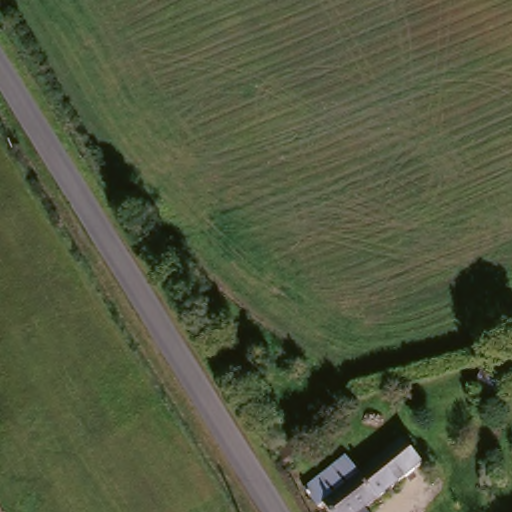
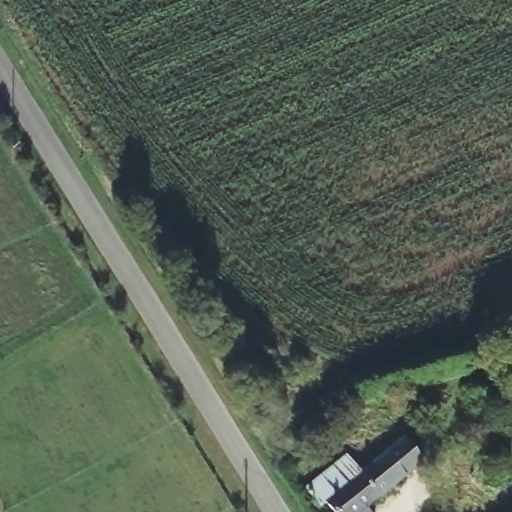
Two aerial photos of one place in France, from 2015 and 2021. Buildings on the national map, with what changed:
unchanged [(422,464),(406,477),(364,512),(334,512),(328,505),(320,511),(306,493),(342,460),(358,477),(385,453),(403,439),(422,464)]

